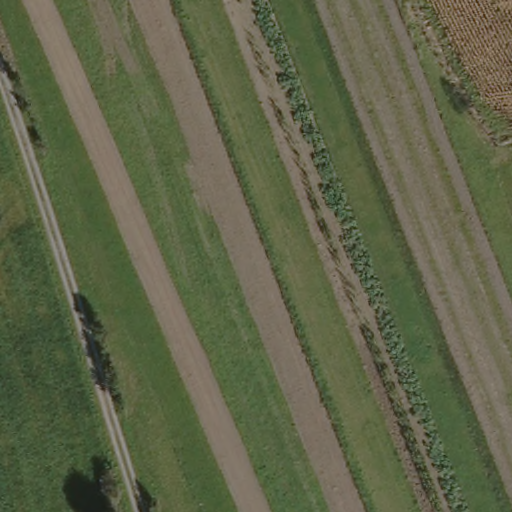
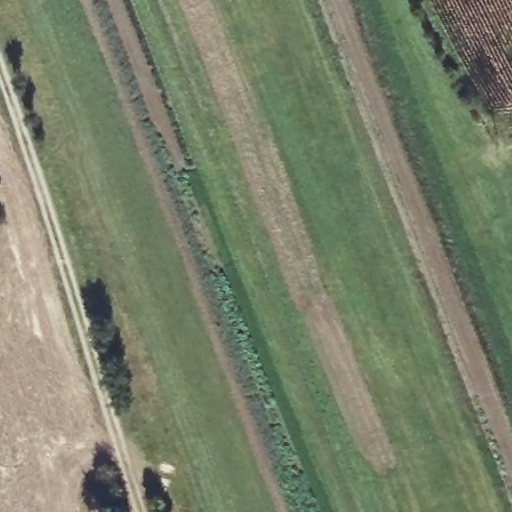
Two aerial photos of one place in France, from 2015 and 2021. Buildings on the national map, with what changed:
[]

